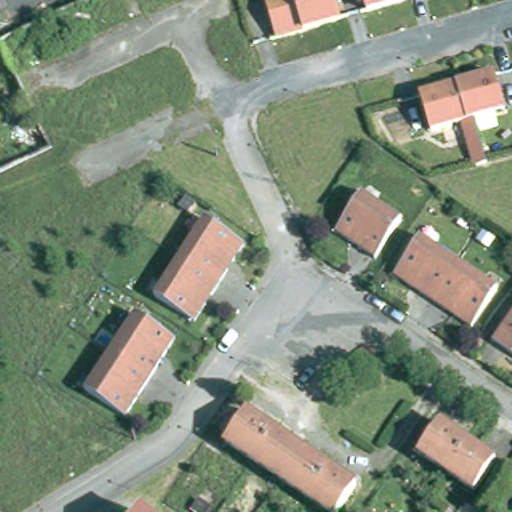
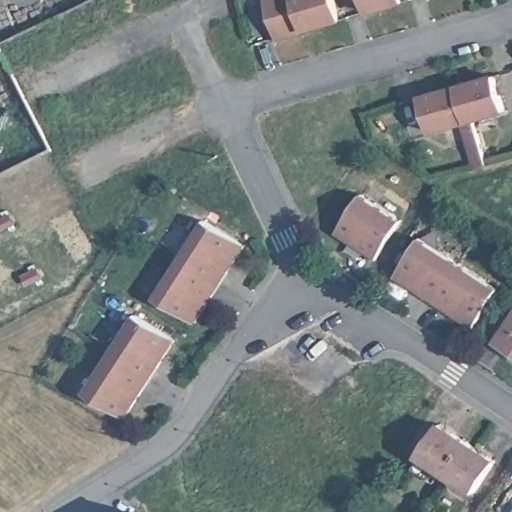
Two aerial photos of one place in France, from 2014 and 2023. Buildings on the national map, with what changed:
unchanged [(303,30),(275,37),(264,0),(333,0),(339,19),(303,30)]
unchanged [(367,13),(363,0),(402,0),(403,2),(367,13)]
unchanged [(495,72),(505,111),(473,120),(485,164),(471,167),(458,125),(430,134),(420,94),(495,72)]
unchanged [(401,220),(375,259),(337,233),(362,194),(401,220)]
unchanged [(205,220),(245,245),(233,262),(230,260),(225,268),(228,270),(211,297),(207,295),(202,302),(206,305),(195,322),(155,297),(205,220)]
unchanged [(472,327),(454,315),(456,312),(448,307),(446,310),(420,293),(422,290),(415,285),(412,288),(395,276),(420,238),(497,288),(472,327)]
unchanged [(512,354),(493,342),(512,313),(512,354)]
unchanged [(136,315),(175,340),(125,417),(87,392),(136,315)]
demolished [(357,485),(339,512),(329,512),(225,443),(246,412),(357,485)]
unchanged [(419,454),(440,423),(495,460),(475,491),(419,454)]

